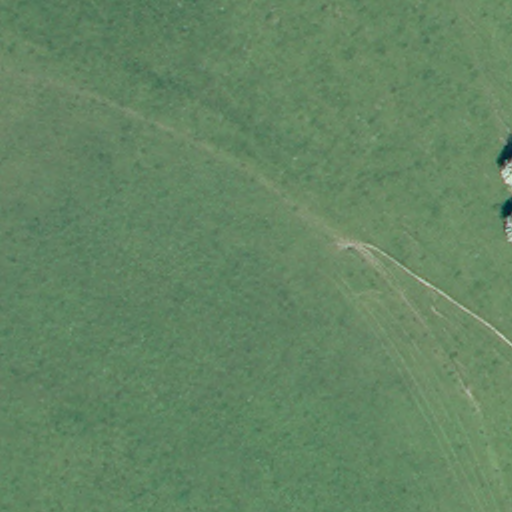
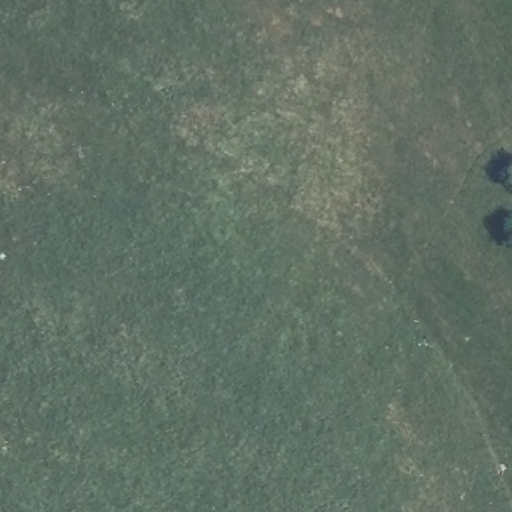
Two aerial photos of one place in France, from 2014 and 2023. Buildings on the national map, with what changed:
[]

